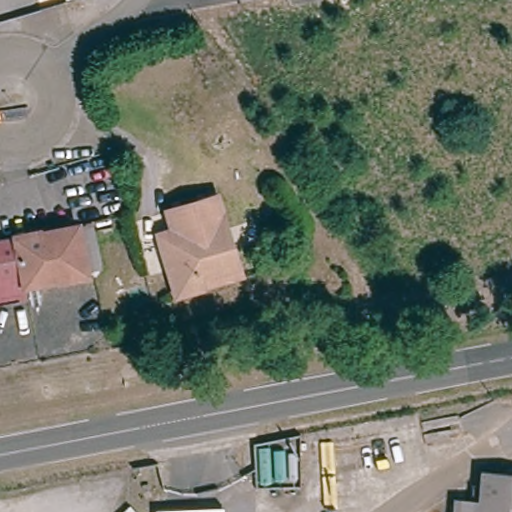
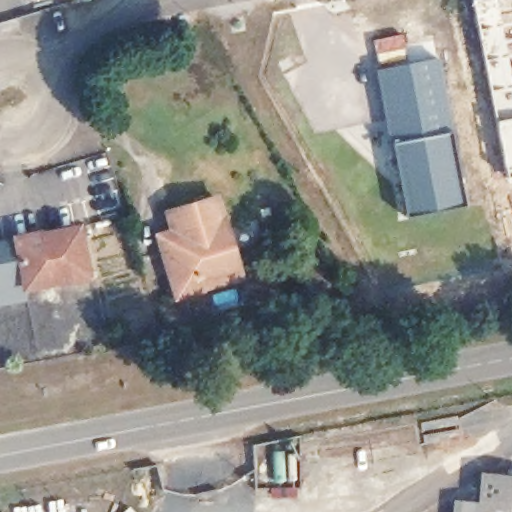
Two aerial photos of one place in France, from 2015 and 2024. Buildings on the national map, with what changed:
new [(508,182),(506,176),(471,0),(512,0),(512,182),(508,182)]
new [(377,69),(439,56),(451,131),(465,204),(407,216),(377,69)]
unchanged [(203,292),(176,301),(160,256),(155,241),(175,235),(169,217),(214,202),(236,267),(241,280),(203,292)]
unchanged [(79,226),(91,280),(26,293),(14,240),(79,226)]
unchanged [(26,293),(31,306),(0,313),(0,243),(14,240),(26,293)]
unchanged [(457,505),(479,506),(481,477),(512,480),(512,512),(456,512),(457,505)]

